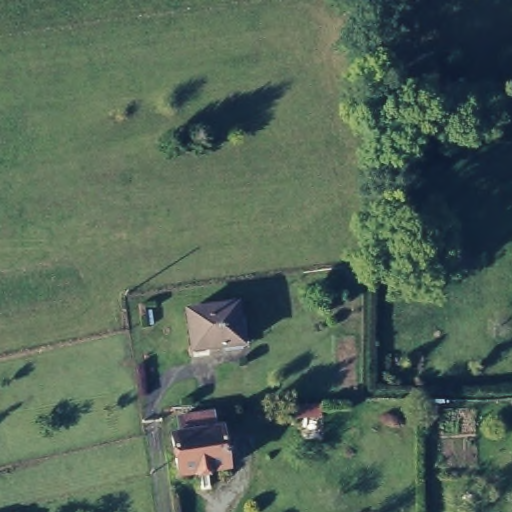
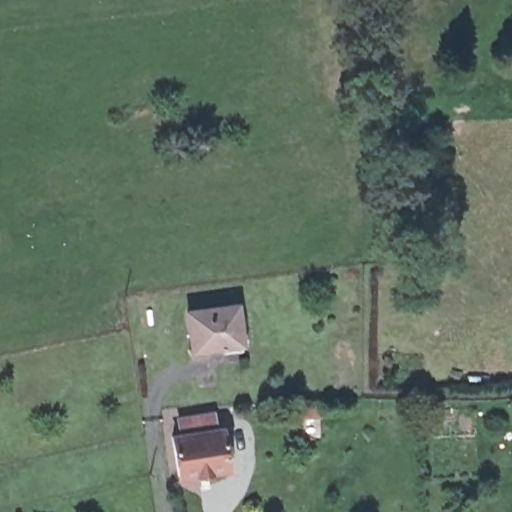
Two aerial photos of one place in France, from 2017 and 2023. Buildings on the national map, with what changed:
unchanged [(234,305),(239,342),(190,348),(186,311),(234,305)]
unchanged [(190,432),(190,422),(223,418),(225,434),(231,435),(234,470),(185,476),(182,442),(183,440),(182,434),(190,432)]
unchanged [(207,512),(187,512),(187,507),(205,504),(207,512)]

